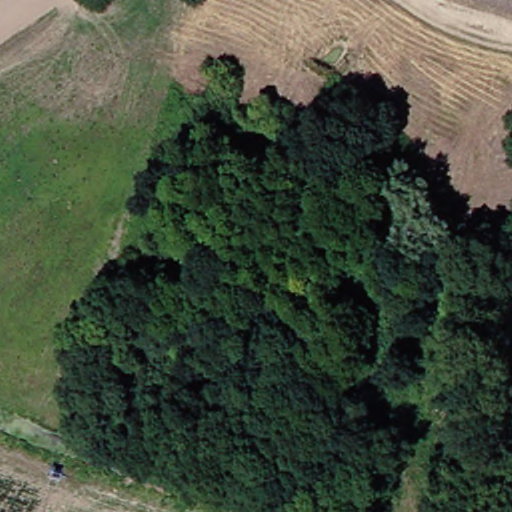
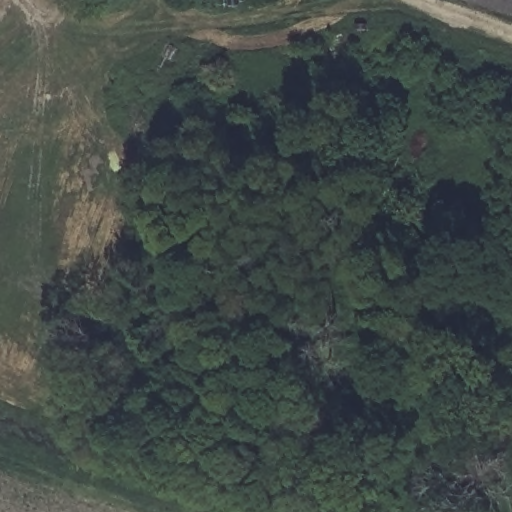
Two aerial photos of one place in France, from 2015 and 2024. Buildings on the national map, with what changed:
unchanged [(512,5),(496,0),(512,0),(512,5)]

